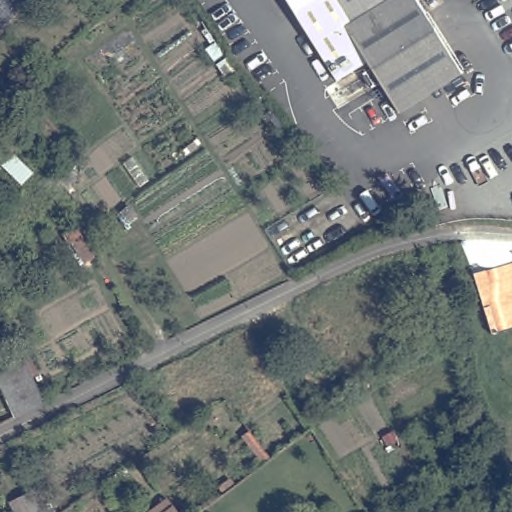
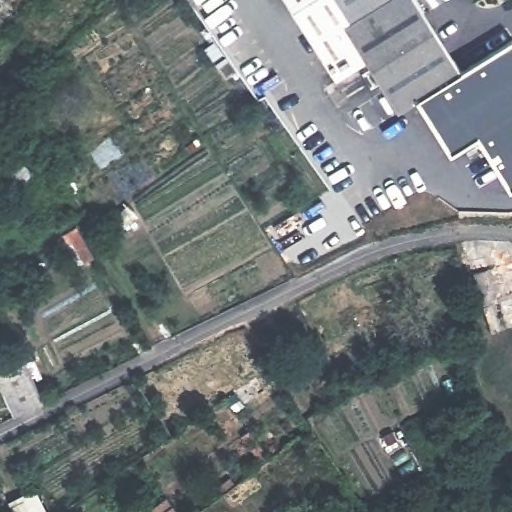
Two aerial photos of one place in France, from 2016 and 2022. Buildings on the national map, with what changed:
unchanged [(436,35),(461,77),(396,115),(373,75),(366,64),(336,82),(335,80),(293,10),(288,0),(417,0),(436,35)]
new [(512,190),(509,191),(478,140),(450,156),(417,103),(461,77),(459,72),(512,40),(512,190)]
unchanged [(21,141),(11,152),(0,142),(0,121),(21,141)]
demolished [(124,274),(143,307),(131,314),(113,281),(124,274)]
unchanged [(17,347),(46,401),(17,416),(0,382),(0,360),(17,347)]
unchanged [(53,512),(19,512),(18,510),(15,505),(40,491),(53,512)]
unchanged [(171,512),(163,512),(168,508),(171,512)]

